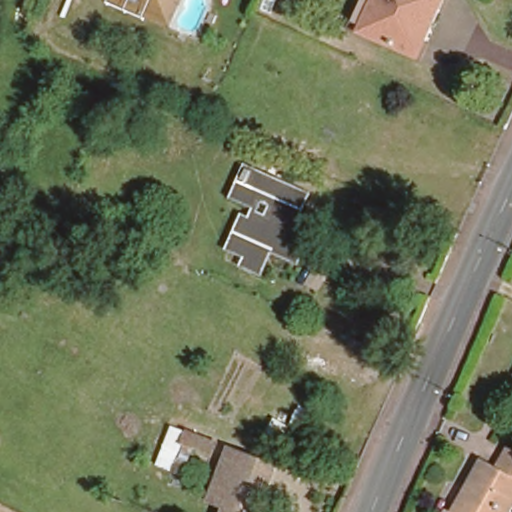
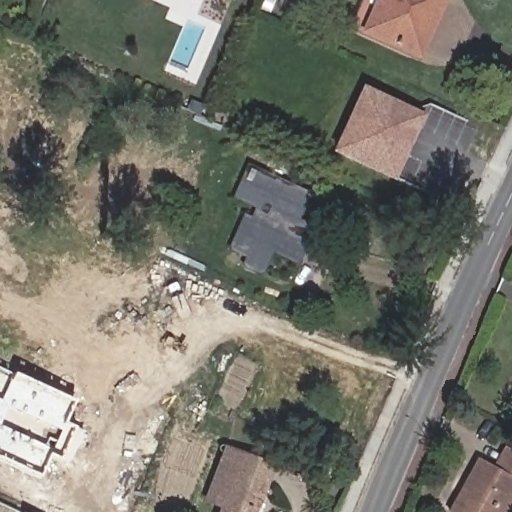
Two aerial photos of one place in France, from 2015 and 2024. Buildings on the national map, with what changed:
new [(233,1),(231,0),(233,0),(233,1)]
unchanged [(357,29),(371,0),(447,0),(419,60),(357,29)]
new [(424,115),(394,181),(332,153),(360,86),(424,115)]
unchanged [(310,197),(300,222),(317,230),(303,263),(284,256),(271,282),(240,268),(244,258),(226,249),(245,207),(227,197),(236,177),(252,185),(258,172),(310,197)]
new [(73,401),(64,424),(75,429),(83,432),(69,465),(58,460),(48,456),(40,477),(0,460),(0,369),(11,374),(73,401)]
unchanged [(187,433),(215,444),(209,456),(183,444),(187,433)]
unchanged [(214,497),(224,472),(229,462),(234,449),(281,468),(262,512),(226,512),(229,505),(214,497)]
unchanged [(452,512),(464,488),(479,461),(492,469),(503,449),(512,455),(512,500),(506,512),(452,512)]
unchanged [(345,479),(348,471),(355,474),(353,481),(345,479)]
unchanged [(331,491),(335,481),(351,486),(347,497),(331,491)]

